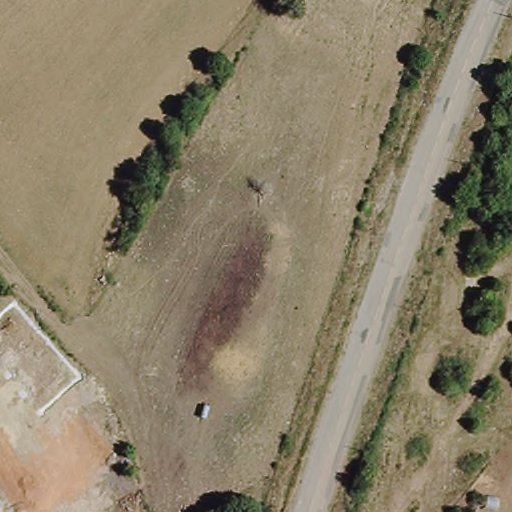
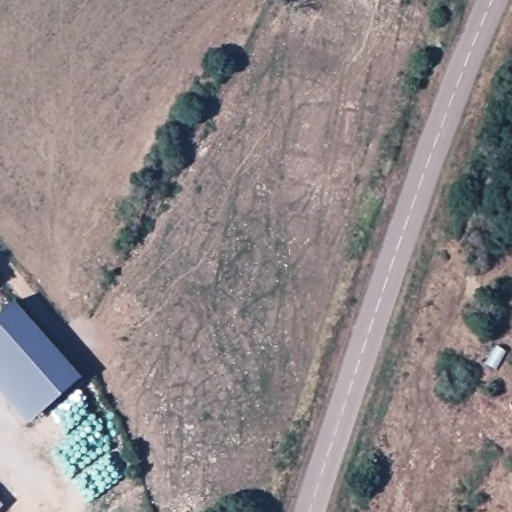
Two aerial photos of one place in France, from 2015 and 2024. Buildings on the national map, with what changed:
new [(27,424),(0,393),(0,310),(10,300),(80,377),(27,424)]
unchanged [(2,512),(0,512),(0,506),(4,510),(2,512)]

